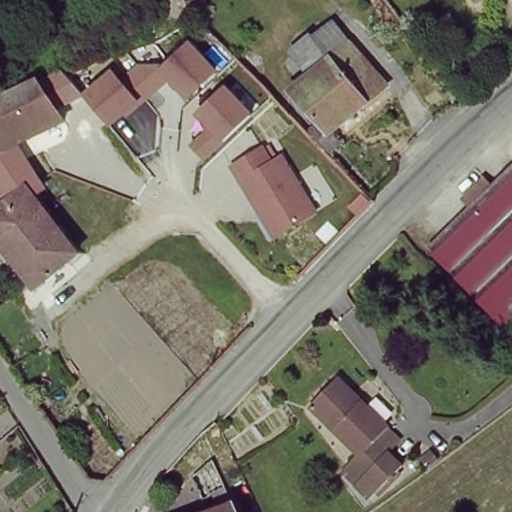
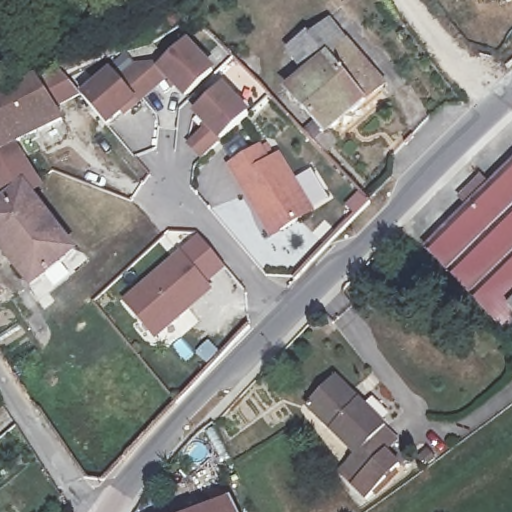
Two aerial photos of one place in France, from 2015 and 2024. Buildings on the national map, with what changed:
unchanged [(180,0),(187,0),(182,3),(180,0)]
unchanged [(388,82),(329,134),(283,86),(303,70),(286,47),(330,19),(388,82)]
unchanged [(163,82),(113,130),(80,95),(108,69),(117,79),(133,66),(158,68),(186,39),(216,66),(187,98),(163,82)]
unchanged [(38,71),(54,111),(45,115),(7,137),(13,145),(32,177),(23,184),(48,217),(53,225),(70,248),(29,280),(0,240),(0,199),(6,194),(0,185),(0,87),(11,82),(38,71)]
unchanged [(201,162),(186,147),(206,127),(195,114),(228,83),(254,112),(201,162)]
unchanged [(233,167),(263,150),(271,165),(281,160),(312,216),(271,239),(233,167)]
unchanged [(498,319),(427,246),(512,167),(512,334),(498,319)]
new [(155,338),(123,300),(181,251),(198,236),(226,269),(207,283),(213,292),(155,338)]
unchanged [(383,452),(398,467),(363,498),(336,472),(351,457),(304,408),(330,383),(334,379),(357,402),(384,429),(395,441),(383,452)]
unchanged [(424,456),(428,462),(422,467),(417,460),(424,456)]
unchanged [(216,509),(206,487),(196,491),(185,466),(206,457),(234,512),(209,512),(216,509)]

